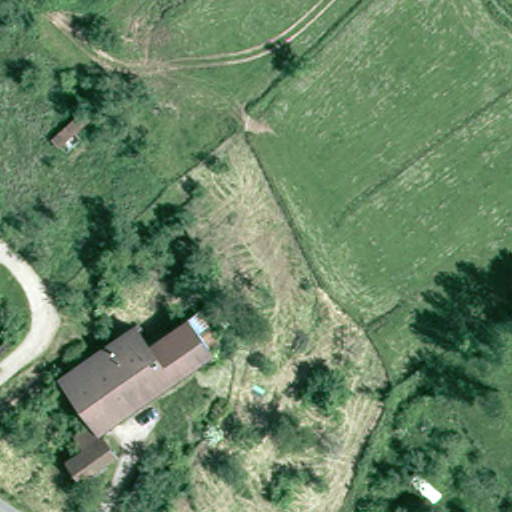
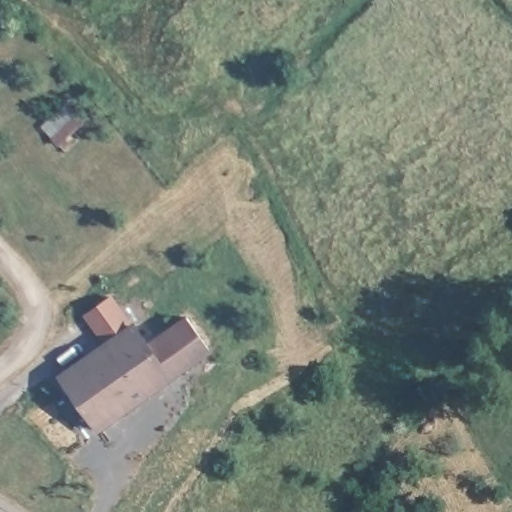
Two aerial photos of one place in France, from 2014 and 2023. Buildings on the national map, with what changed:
new [(83,313),(110,294),(130,321),(100,343),(83,313)]
unchanged [(97,432),(65,388),(140,333),(155,353),(193,325),(195,327),(202,322),(223,351),(215,358),(102,440),(97,432)]

